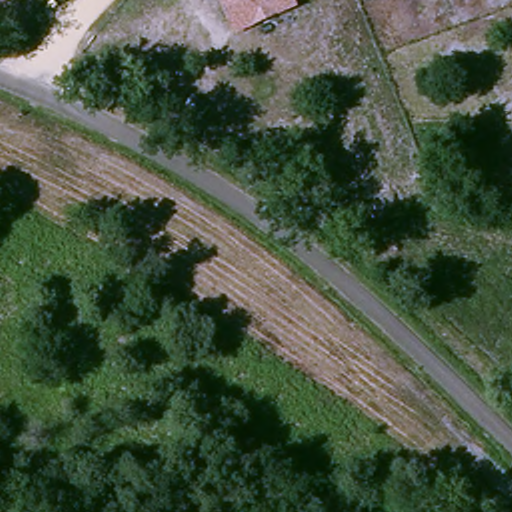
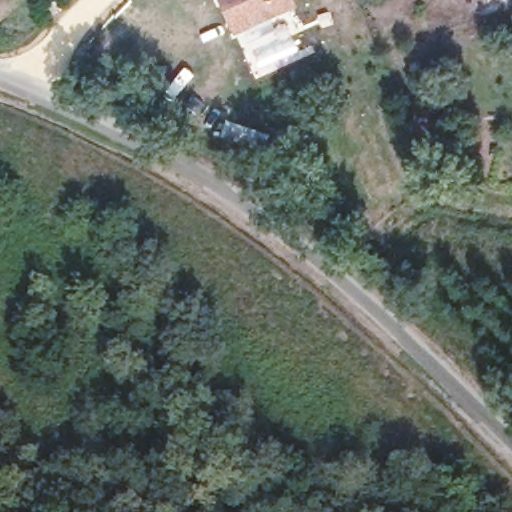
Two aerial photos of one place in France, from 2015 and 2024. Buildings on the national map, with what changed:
unchanged [(300,7),(235,35),(219,0),(296,0),(300,7)]

